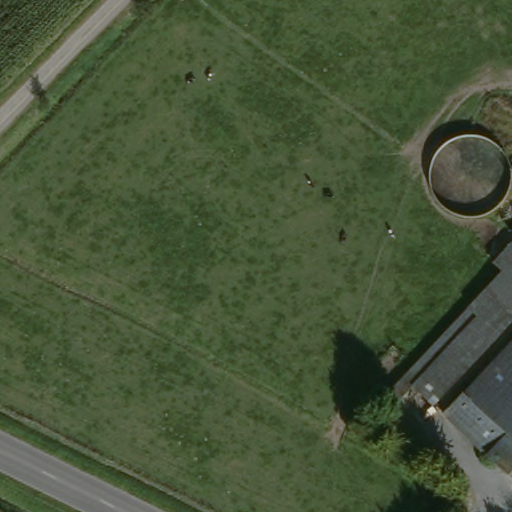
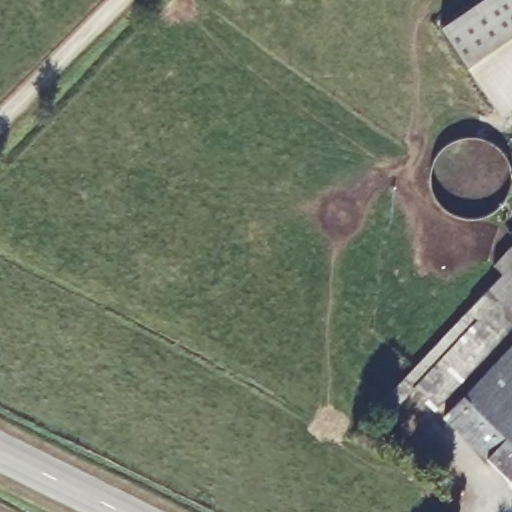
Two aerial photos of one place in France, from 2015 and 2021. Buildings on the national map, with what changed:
new [(501,111),(439,22),(472,0),(512,0),(512,104),(501,111)]
unchanged [(498,275),(488,268),(512,247),(512,309),(486,338),(471,321),(463,314),(498,275)]
unchanged [(388,414),(378,405),(463,314),(471,321),(408,392),(388,414)]
unchanged [(423,407),(408,392),(471,321),(486,338),(423,407)]
unchanged [(512,344),(512,449),(459,399),(512,344)]
unchanged [(439,421),(459,399),(512,449),(512,492),(439,421)]

